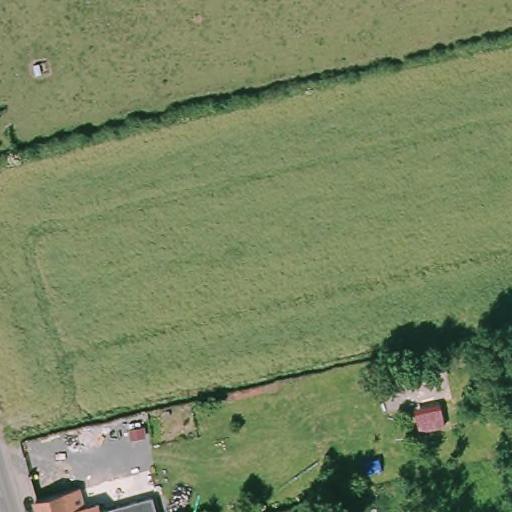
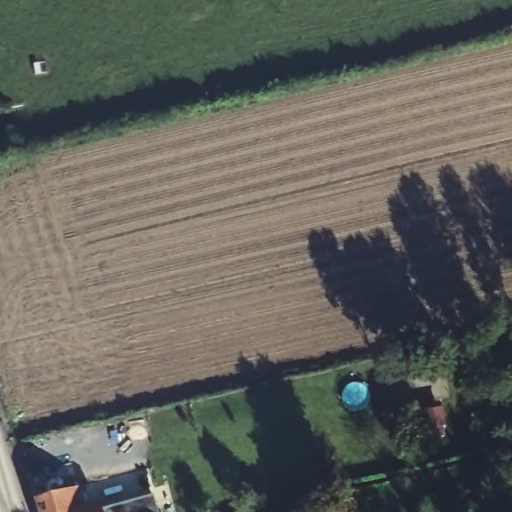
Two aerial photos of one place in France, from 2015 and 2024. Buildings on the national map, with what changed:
unchanged [(57,467),(64,491),(78,487),(85,510),(100,505),(102,512),(36,512),(26,476),(57,467)]

